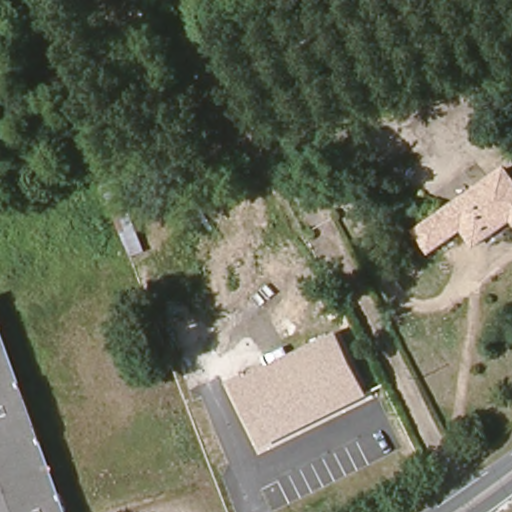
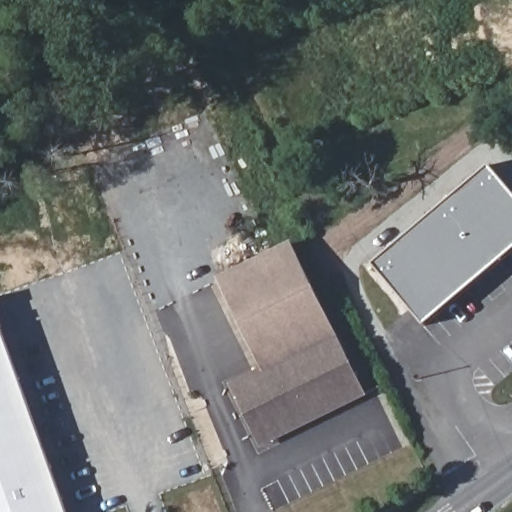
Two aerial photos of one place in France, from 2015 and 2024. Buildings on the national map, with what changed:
demolished [(512,180),(512,233),(506,232),(489,245),(482,238),(472,243),(461,228),(429,252),(412,230),(499,162),(512,180)]
new [(512,193),(512,240),(418,320),(370,263),(487,164),(512,193)]
new [(418,320),(512,240),(512,249),(423,325),(418,320)]
new [(292,241),(334,333),(263,368),(216,277),(292,241)]
unchanged [(70,512),(0,512),(0,318),(70,512)]
unchanged [(263,368),(334,333),(366,395),(260,447),(228,385),(263,368)]

